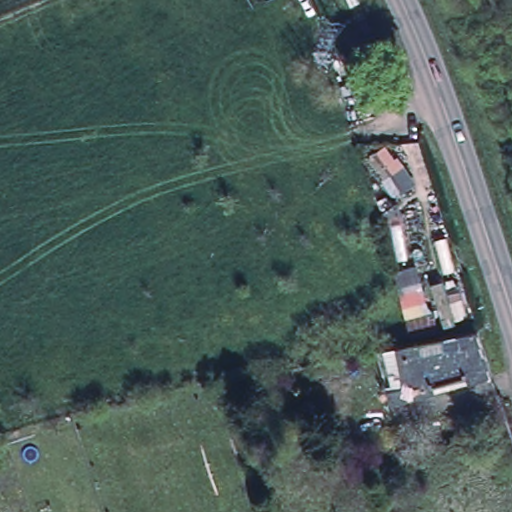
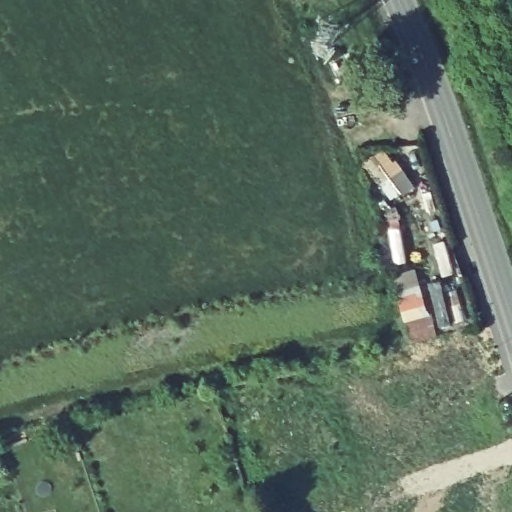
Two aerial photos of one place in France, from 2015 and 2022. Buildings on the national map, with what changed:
demolished [(497,379),(390,401),(381,354),(482,333),(497,379)]

